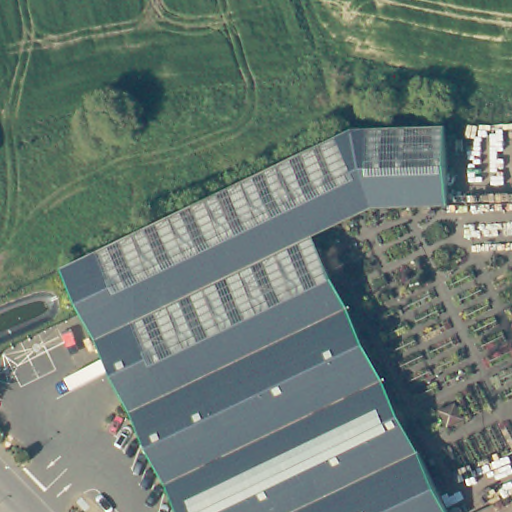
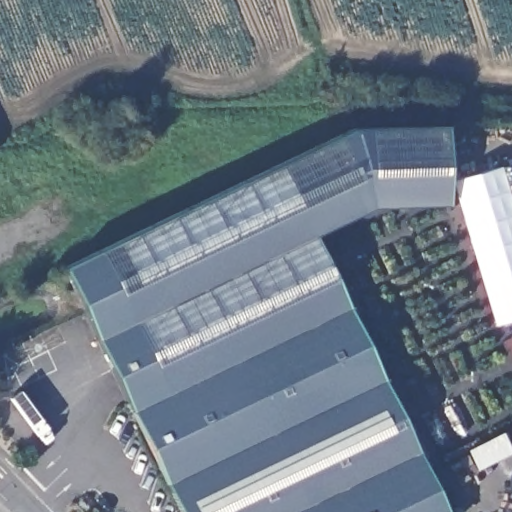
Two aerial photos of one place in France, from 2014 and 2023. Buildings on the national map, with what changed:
unchanged [(62,273),(347,137),(448,127),(451,207),(371,207),(281,260),(296,287),(330,270),(443,512),(173,512),(62,273)]
new [(512,202),(512,320),(496,325),(453,181),(501,165),(512,202)]

